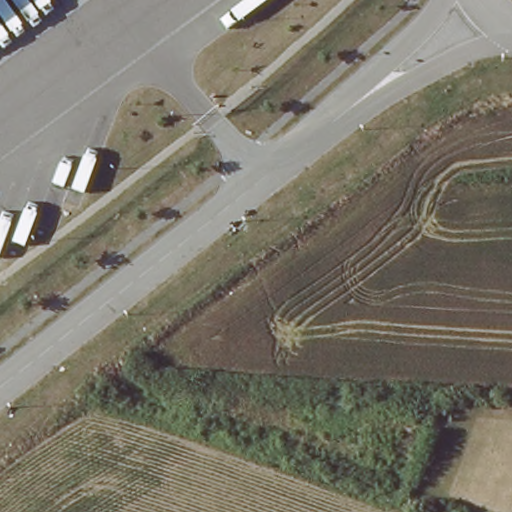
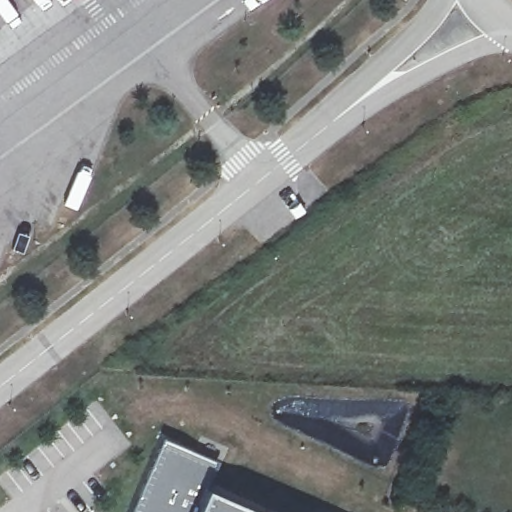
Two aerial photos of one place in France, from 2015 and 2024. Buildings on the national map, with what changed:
new [(222,468),(212,491),(262,512),(139,512),(168,445),(222,468)]

